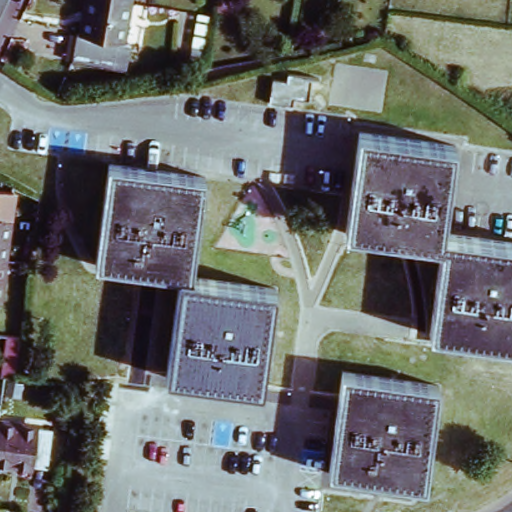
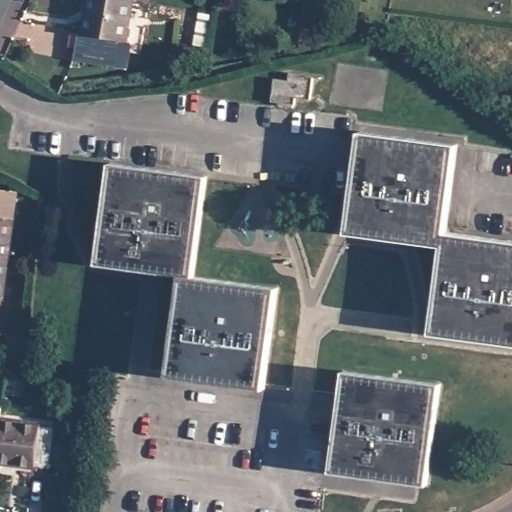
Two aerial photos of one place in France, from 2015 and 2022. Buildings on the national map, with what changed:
unchanged [(122,54),(131,56),(126,83),(74,73),(78,46),(84,47),(94,0),(122,0),(133,2),(122,54)]
unchanged [(122,0),(133,0),(133,2),(122,0)]
unchanged [(325,105),(304,102),(303,112),(278,109),(281,80),(306,83),(307,75),(329,78),(325,105)]
unchanged [(512,238),(512,344),(429,332),(441,242),(346,229),(359,133),(452,143),(442,228),(512,238)]
unchanged [(276,284),(260,390),(169,376),(181,282),(93,268),(109,161),(203,174),(191,272),(276,284)]
unchanged [(12,196),(3,259),(0,259),(0,194),(12,196)]
unchanged [(3,259),(0,276),(0,259),(3,259)]
unchanged [(10,379),(16,336),(25,337),(19,379),(10,379)]
unchanged [(424,484),(328,470),(343,369),(438,381),(424,484)]
unchanged [(52,429),(46,468),(0,463),(0,423),(52,429)]

